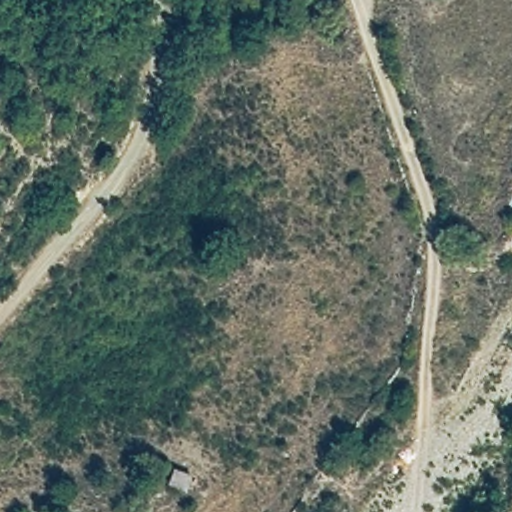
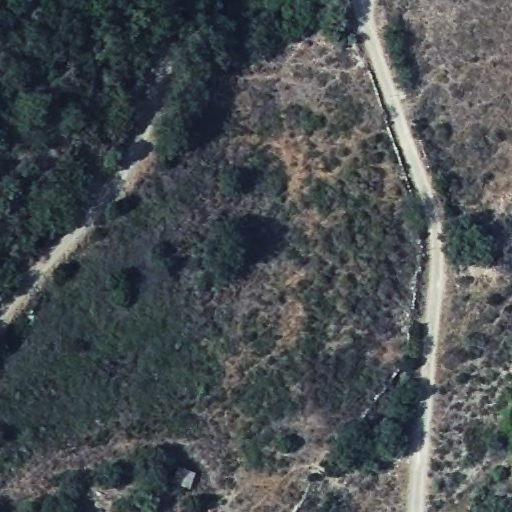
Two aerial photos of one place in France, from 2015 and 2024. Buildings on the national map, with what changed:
unchanged [(189,493),(166,482),(171,466),(195,475),(189,493)]

